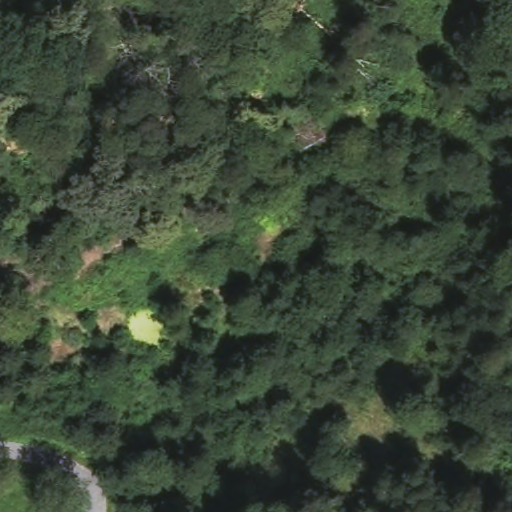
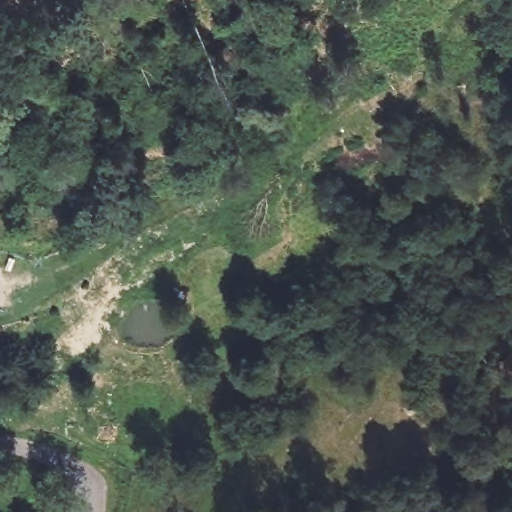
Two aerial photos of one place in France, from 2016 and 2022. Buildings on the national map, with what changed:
unchanged [(310,104),(328,128),(292,152),(273,128),(310,104)]

